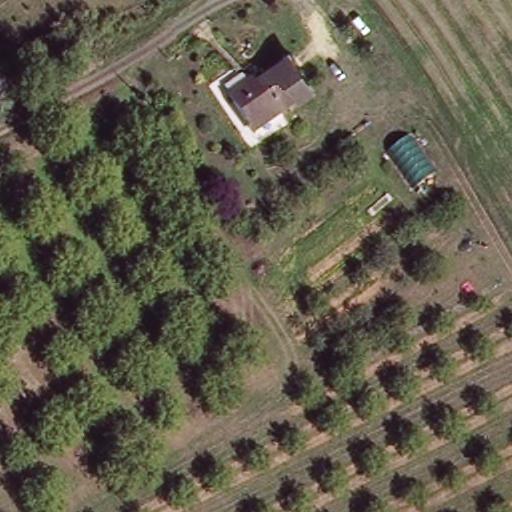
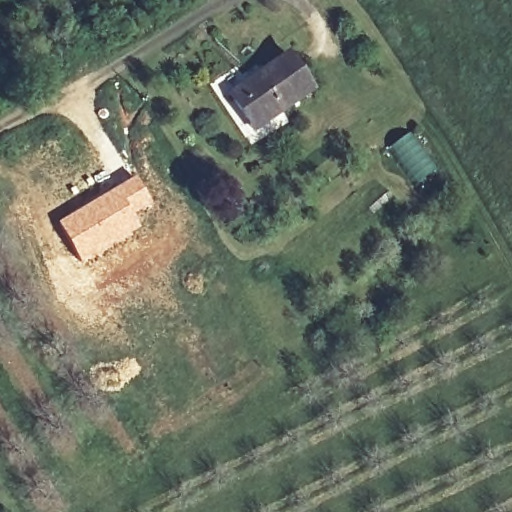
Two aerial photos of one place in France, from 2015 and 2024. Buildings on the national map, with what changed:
unchanged [(316,91),(251,133),(223,92),(289,51),(316,91)]
new [(416,185),(392,148),(412,132),(437,171),(416,185)]
new [(136,177),(152,205),(134,215),(142,227),(82,262),(58,223),(136,177)]

